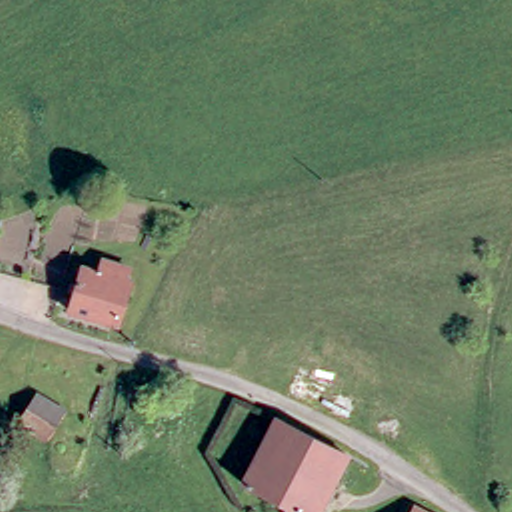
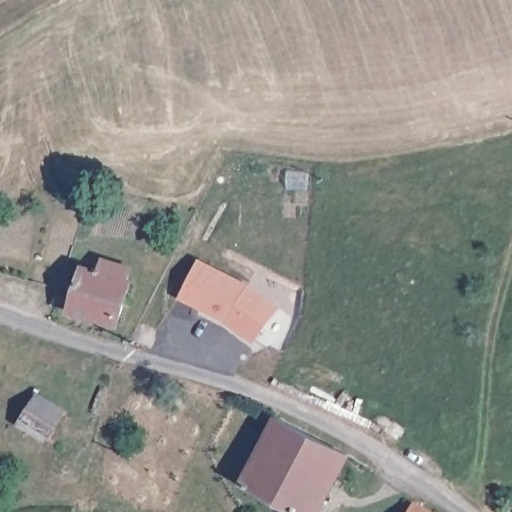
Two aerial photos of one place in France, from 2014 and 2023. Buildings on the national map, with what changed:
new [(250,284),(280,307),(253,342),(226,322),(180,299),(198,257),(250,284)]
unchanged [(115,272),(120,261),(140,270),(136,280),(143,284),(125,327),(75,305),(91,263),(115,272)]
demolished [(216,367),(150,353),(160,327),(225,339),(216,367)]
unchanged [(55,445),(27,434),(40,401),(68,414),(55,445)]
unchanged [(351,457),(322,512),(299,512),(243,484),(250,474),(241,470),(249,456),(256,461),(278,418),(351,457)]
unchanged [(445,512),(419,512),(425,502),(445,512)]

